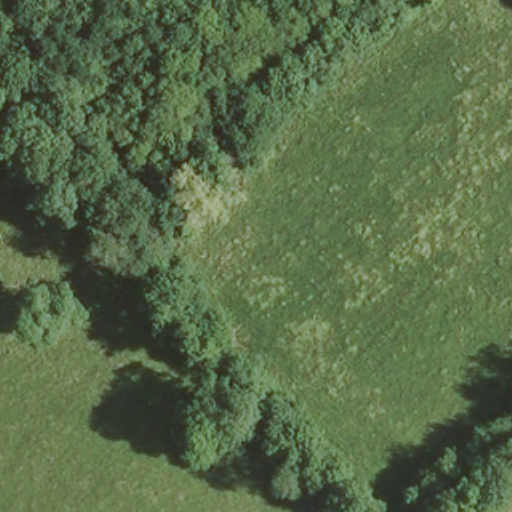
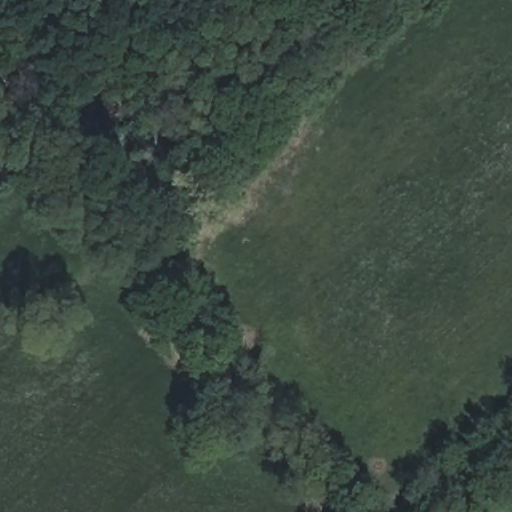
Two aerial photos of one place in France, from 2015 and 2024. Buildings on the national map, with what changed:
unchanged [(236,409),(248,423),(231,438),(218,423),(236,409)]

